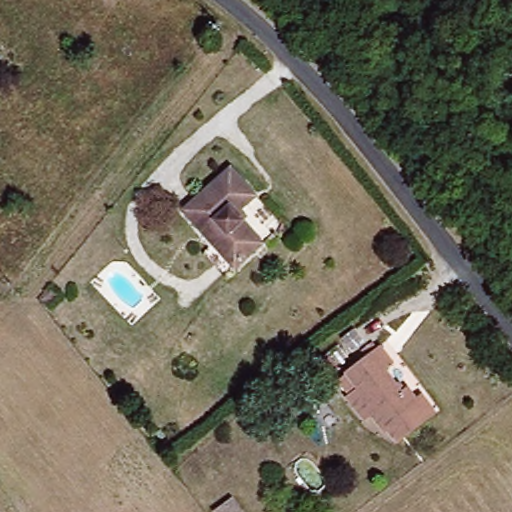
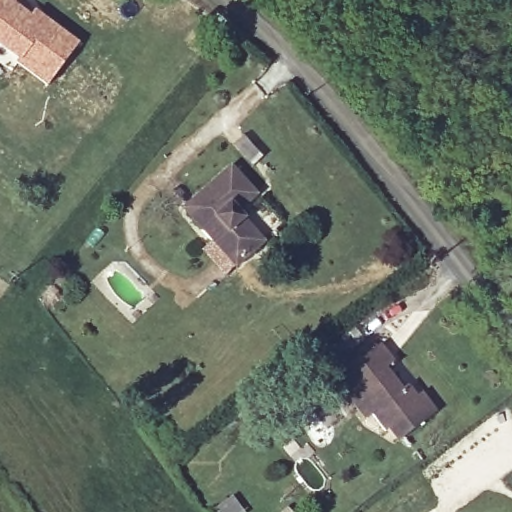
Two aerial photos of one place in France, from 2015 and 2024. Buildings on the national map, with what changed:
new [(33,17),(37,11),(81,41),(53,82),(22,61),(16,70),(0,59),(0,0),(17,0),(14,5),(33,17)]
unchanged [(257,191),(239,210),(271,240),(245,267),(191,216),(235,170),(257,191)]
unchanged [(409,435),(401,425),(396,431),(382,415),(377,418),(355,393),(366,385),(354,369),(384,345),(401,365),(390,374),(406,392),(414,386),(425,398),(432,396),(441,407),(409,435)]

